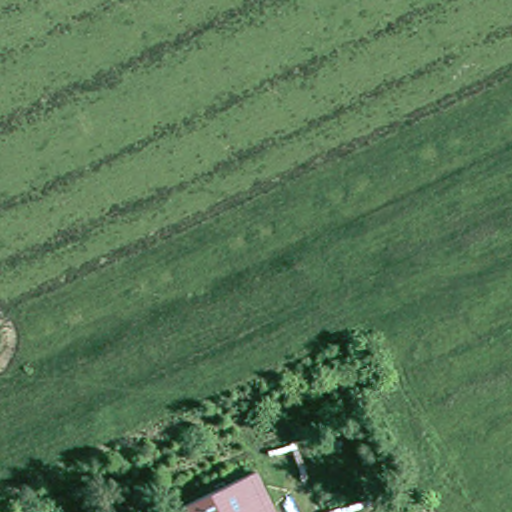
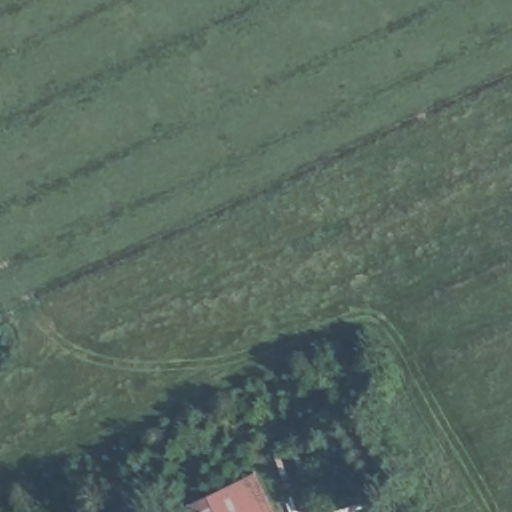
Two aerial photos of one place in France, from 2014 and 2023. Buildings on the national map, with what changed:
unchanged [(173,509),(253,477),(269,512),(174,512),(173,509)]

